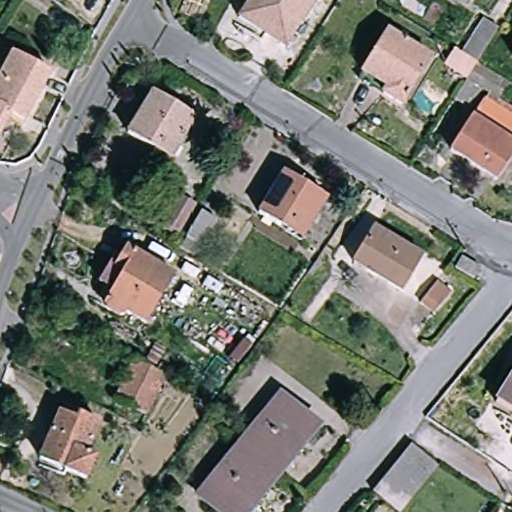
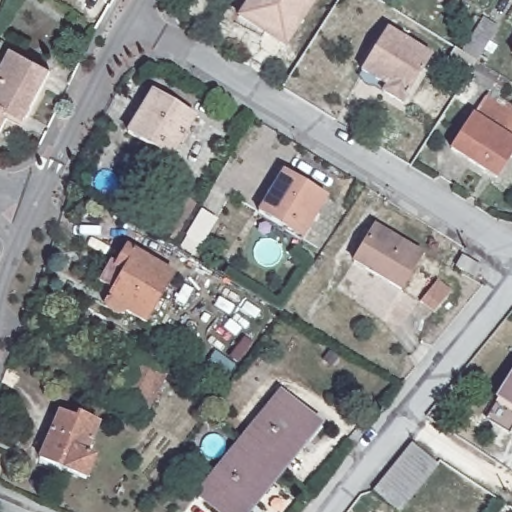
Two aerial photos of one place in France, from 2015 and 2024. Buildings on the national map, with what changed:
unchanged [(253,0),(317,0),(289,44),(270,32),(266,39),(239,22),(253,0)]
unchanged [(479,59),(479,58),(478,58),(477,58),(476,59),(475,59),(462,50),(489,10),(505,20),(479,59)]
unchanged [(390,31),(432,57),(402,104),(385,93),(388,87),(363,71),(390,31)]
unchanged [(14,49),(50,67),(29,106),(20,102),(13,114),(12,112),(0,133),(0,75),(14,49)]
unchanged [(512,77),(512,92),(507,100),(512,104),(512,160),(500,177),(452,152),(489,95),(469,80),(478,61),(512,77)]
unchanged [(156,91),(196,116),(170,159),(130,134),(156,91)]
unchanged [(285,172),(328,199),(302,240),(259,213),(285,172)]
unchanged [(187,197),(202,205),(186,232),(171,224),(187,197)]
unchanged [(210,212),(224,221),(208,246),(194,239),(210,212)]
unchanged [(375,227),(422,257),(400,291),(353,261),(375,227)]
unchanged [(126,307),(125,310),(122,311),(118,310),(113,306),(110,303),(109,300),(110,295),(126,266),(117,260),(128,241),(175,268),(148,316),(129,305),(126,307)]
unchanged [(480,258),(483,260),(477,270),(467,264),(474,254),(480,258)]
unchanged [(438,282),(452,295),(432,315),(419,302),(438,282)]
unchanged [(150,415),(120,397),(145,357),(175,375),(150,415)]
unchanged [(512,384),(512,402),(504,396),(512,384)]
unchanged [(322,424),(249,512),(222,512),(200,494),(283,392),(322,424)]
unchanged [(86,448),(97,453),(85,477),(42,457),(64,410),(75,415),(80,407),(101,418),(86,448)]
unchanged [(384,487),(394,475),(413,452),(422,441),(444,461),(436,471),(417,495),(407,507),(384,487)]

